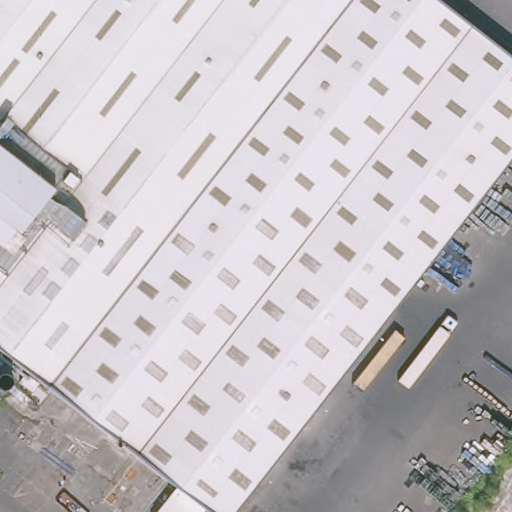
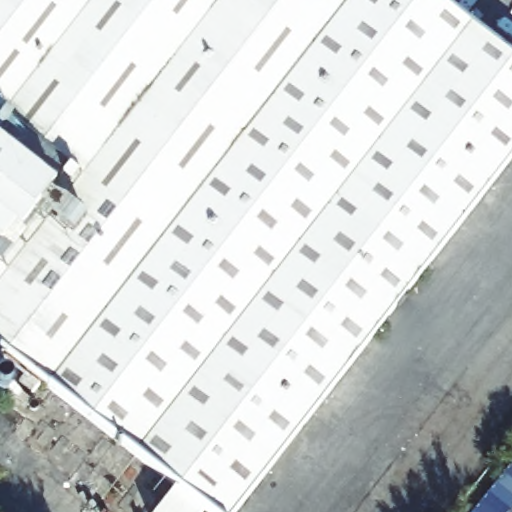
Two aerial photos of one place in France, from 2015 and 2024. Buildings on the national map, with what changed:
unchanged [(117,436),(117,437),(110,447),(102,440),(33,385),(0,357),(0,0),(450,0),(512,48),(512,154),(232,512),(214,512),(117,436)]
new [(512,463),(512,512),(473,512),(512,463)]

